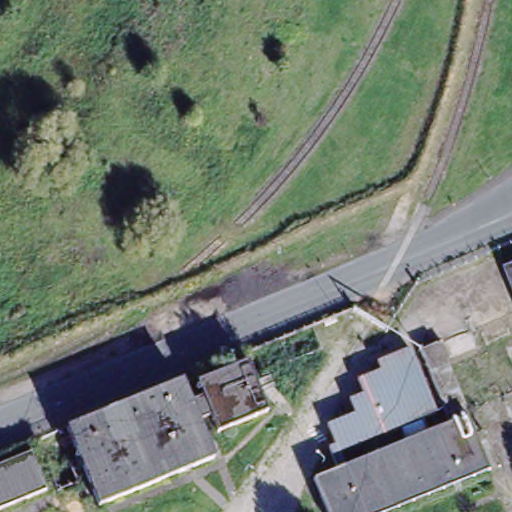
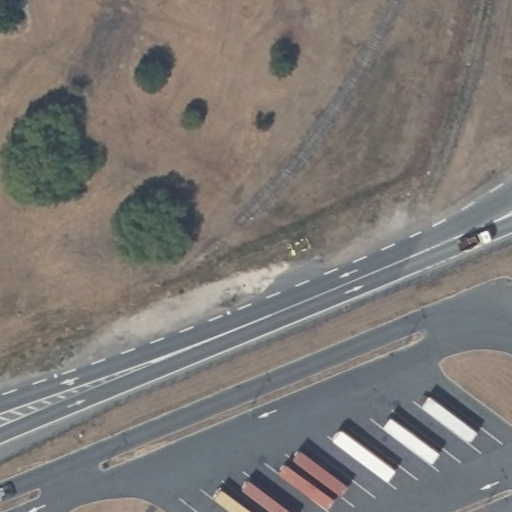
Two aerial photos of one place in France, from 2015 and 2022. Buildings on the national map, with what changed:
demolished [(507,268),(512,266),(512,279),(507,268)]
demolished [(490,335),(485,324),(512,313),(512,326),(490,335)]
demolished [(423,349),(441,341),(448,358),(470,414),(466,415),(451,422),(423,349)]
demolished [(507,347),(512,345),(512,357),(507,347)]
demolished [(312,473),(329,446),(336,443),(327,422),(355,411),(349,397),(363,392),(358,378),(381,368),(377,359),(411,346),(438,412),(340,452),(346,465),(451,422),(466,415),(488,469),(385,512),(329,512),(315,478),(312,473)]
demolished [(203,394),(198,382),(248,361),(268,411),(218,431),(211,414),(197,419),(213,459),(98,506),(66,426),(92,416),(121,404),(150,392),(179,379),(180,379),(189,400),(203,394)]
demolished [(512,401),(512,427),(503,405),(512,401)]
demolished [(45,489),(0,508),(0,462),(29,451),(45,489)]

